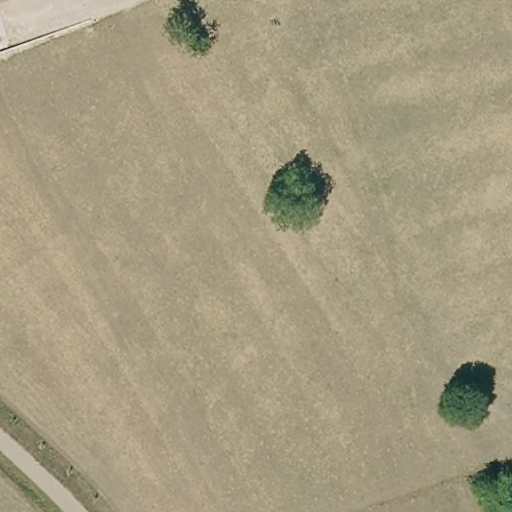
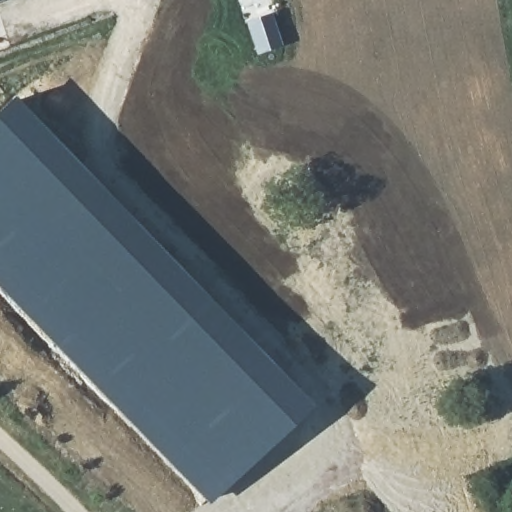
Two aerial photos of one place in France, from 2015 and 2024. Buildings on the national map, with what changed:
demolished [(8,0),(0,3),(0,0),(8,0)]
new [(8,35),(0,39),(0,12),(8,35)]
new [(14,96),(313,406),(207,505),(50,347),(0,293),(0,109),(14,96)]

